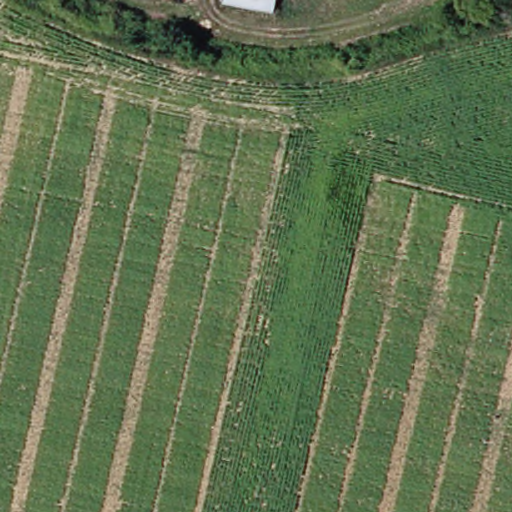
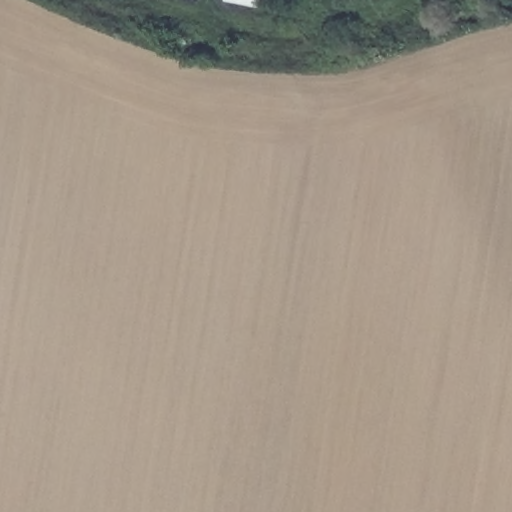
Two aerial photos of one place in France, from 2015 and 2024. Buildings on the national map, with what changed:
unchanged [(233,0),(278,0),(274,13),(233,0)]

